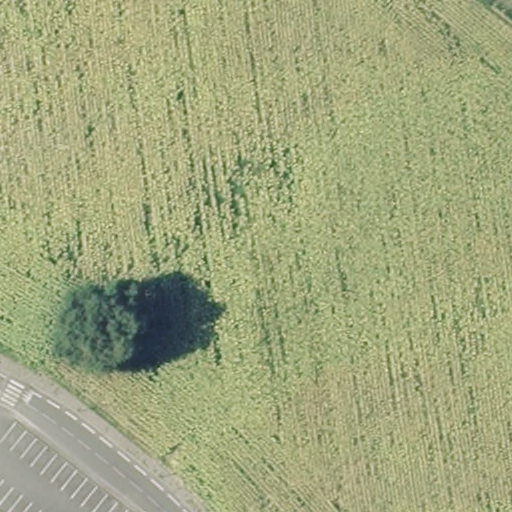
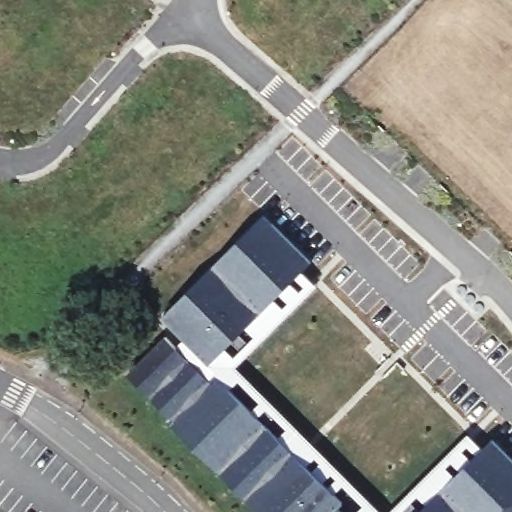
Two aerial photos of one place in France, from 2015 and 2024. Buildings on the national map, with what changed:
new [(301,274),(316,287),(235,368),(381,512),(258,512),(169,423),(173,419),(127,375),(165,337),(177,350),(183,341),(160,318),(265,216),(312,263),(301,274)]
new [(482,451),(493,440),(512,458),(512,512),(389,512),(468,435),(482,451)]

